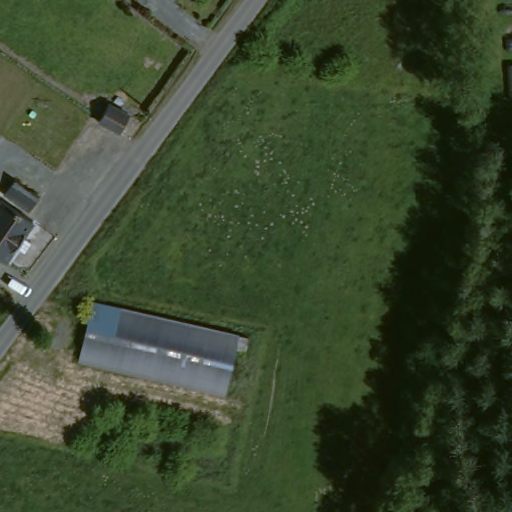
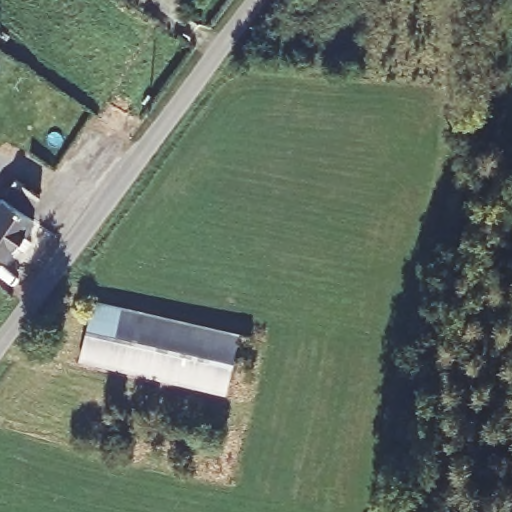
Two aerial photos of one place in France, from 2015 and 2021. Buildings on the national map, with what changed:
unchanged [(102,121),(112,103),(130,113),(119,131),(102,121)]
unchanged [(7,261),(0,256),(0,201),(1,201),(2,198),(31,218),(36,222),(25,236),(17,247),(7,261)]
unchanged [(238,333),(224,393),(105,367),(79,361),(94,302),(238,333)]

